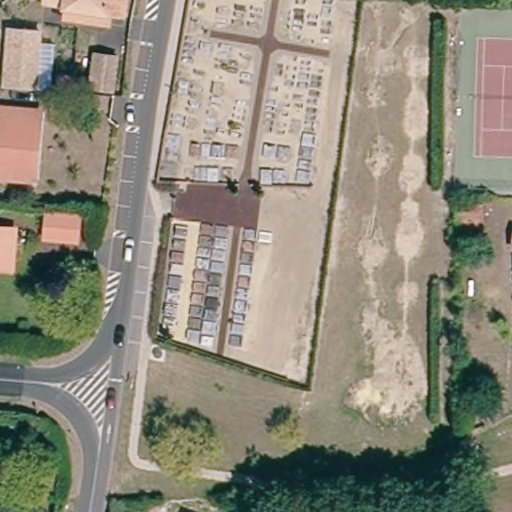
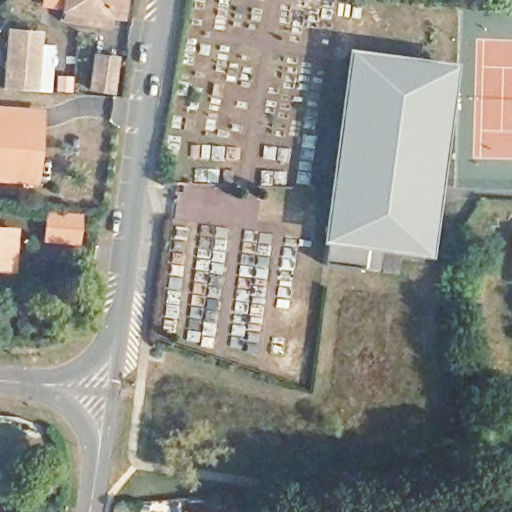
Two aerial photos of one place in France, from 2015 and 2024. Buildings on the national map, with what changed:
unchanged [(77,16),(77,15),(57,12),(58,0),(127,0),(125,22),(124,32),(76,26),(77,16)]
unchanged [(4,77),(7,19),(39,21),(35,79),(4,77)]
new [(40,45),(55,46),(51,91),(36,90),(40,45)]
new [(429,253),(383,247),(380,267),(323,260),(326,240),(351,49),(455,62),(429,253)]
unchanged [(111,92),(89,90),(92,57),(115,60),(111,92)]
unchanged [(40,165),(39,182),(0,179),(0,112),(1,112),(39,115),(44,115),(40,165)]
unchanged [(76,217),(75,241),(44,241),(45,216),(76,217)]
unchanged [(0,231),(24,233),(21,255),(20,265),(0,264),(0,231)]
unchanged [(509,250),(510,235),(512,235),(512,250),(509,250)]
unchanged [(39,460),(22,474),(10,459),(24,445),(39,460)]
demolished [(202,512),(157,512),(157,508),(202,506),(202,512)]
new [(191,512),(183,512),(184,509),(191,512)]

